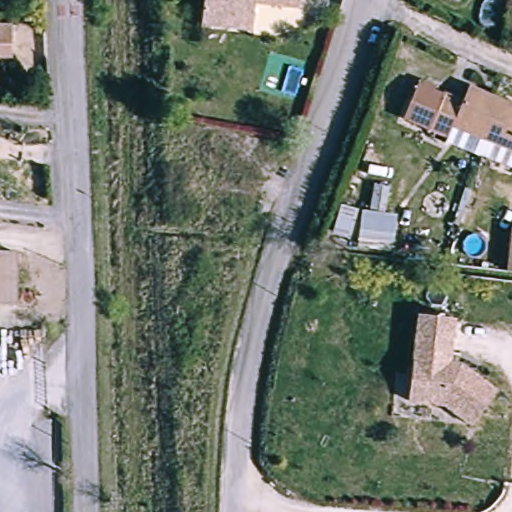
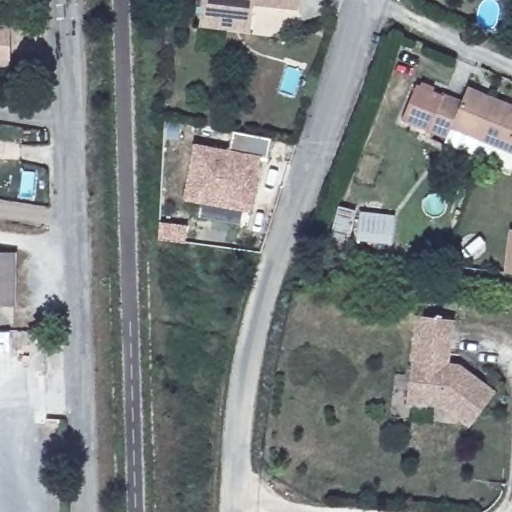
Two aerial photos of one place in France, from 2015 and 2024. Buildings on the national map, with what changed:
unchanged [(205,0),(249,0),(248,13),(245,30),(202,23),(204,5),(205,0)]
unchanged [(269,3),(252,0),(269,0),(269,3)]
unchanged [(294,7),(269,3),(269,0),(295,0),(294,7)]
unchanged [(16,66),(0,65),(0,25),(19,26),(16,66)]
unchanged [(439,108),(459,116),(464,102),(512,121),(512,163),(448,138),(443,150),(400,134),(412,104),(437,113),(439,108)]
new [(276,137),(274,158),(266,157),(261,212),(192,206),(198,149),(233,153),(235,133),(276,137)]
unchanged [(338,204),(359,211),(370,211),(375,186),(388,188),(384,214),(397,216),(391,255),(355,252),(354,244),(328,235),(338,204)]
unchanged [(507,228),(512,229),(512,275),(503,274),(507,228)]
unchanged [(25,254),(23,307),(0,307),(0,254),(25,254)]
unchanged [(469,428),(440,406),(408,404),(416,316),(454,320),(450,363),(459,363),(497,392),(469,428)]

